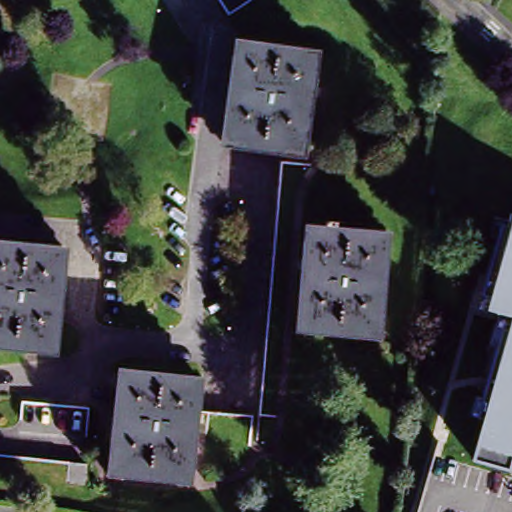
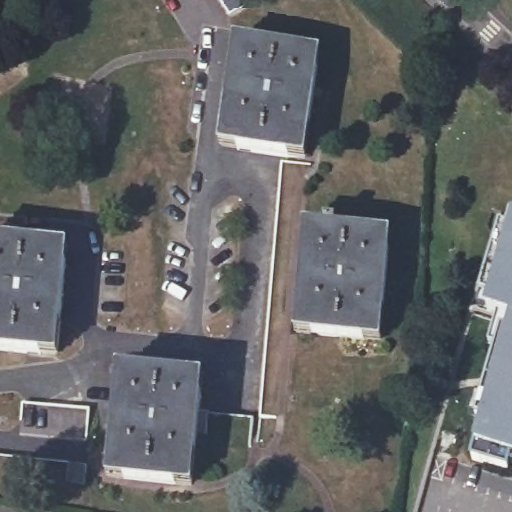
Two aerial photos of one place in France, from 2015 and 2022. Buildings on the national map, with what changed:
unchanged [(253,7),(225,19),(214,0),(249,0),(253,7)]
unchanged [(216,152),(223,45),(310,51),(302,158),(278,156),(216,152)]
unchanged [(302,158),(296,236),(289,340),(283,419),(258,416),(278,156),(302,158)]
unchanged [(486,310),(512,217),(512,459),(511,459),(507,471),(471,461),(512,318),(486,310)]
unchanged [(296,236),(384,243),(376,347),(289,340),(296,236)]
unchanged [(63,249),(56,355),(0,351),(0,245),(63,249)]
unchanged [(194,436),(191,482),(108,477),(115,368),(198,373),(196,409),(194,436)]
unchanged [(19,405),(85,409),(83,437),(18,434),(19,405)]
unchanged [(254,412),(253,439),(194,436),(196,409),(254,412)]
unchanged [(85,457),(84,476),(70,475),(69,486),(0,481),(0,452),(85,457)]

